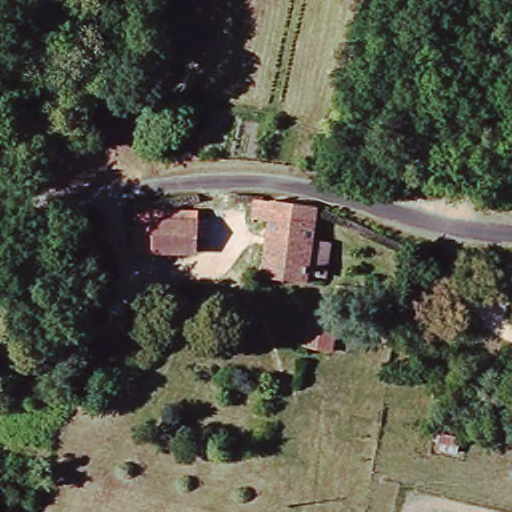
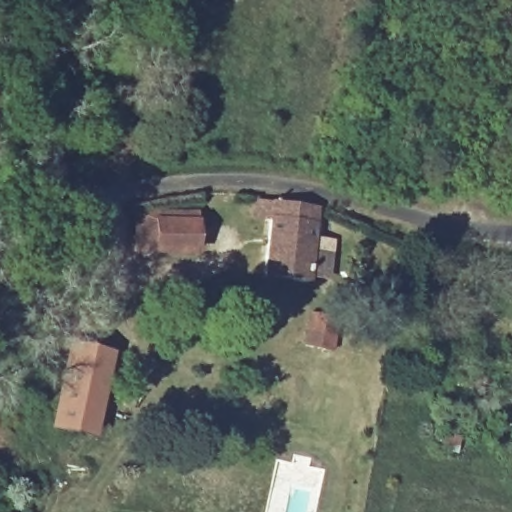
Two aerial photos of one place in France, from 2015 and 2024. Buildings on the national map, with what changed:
unchanged [(317,211),(305,277),(259,272),(268,201),(317,211)]
unchanged [(191,257),(147,250),(148,222),(194,224),(191,257)]
unchanged [(337,315),(331,344),(308,341),(310,312),(337,315)]
new [(67,341),(116,352),(94,441),(47,430),(67,341)]

